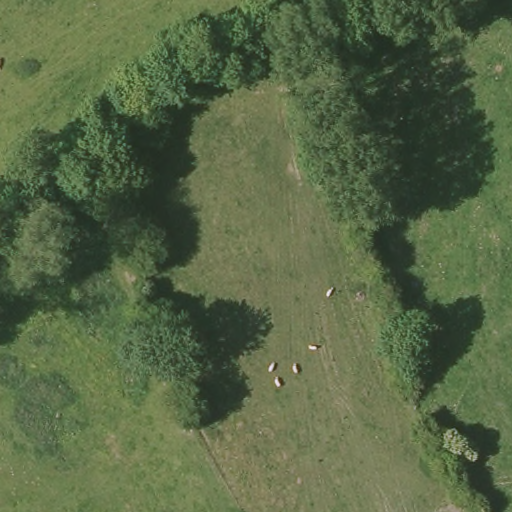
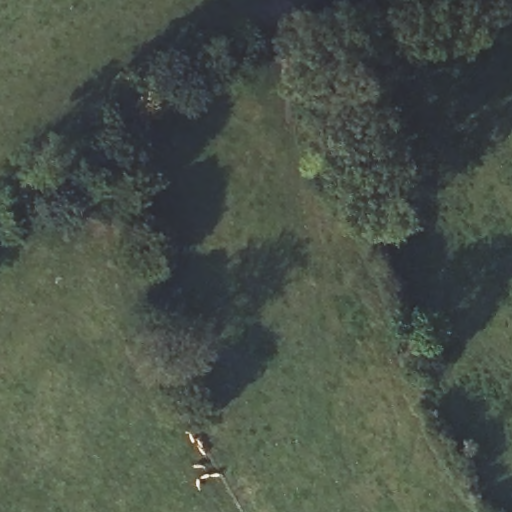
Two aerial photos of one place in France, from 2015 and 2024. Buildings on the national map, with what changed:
[]

